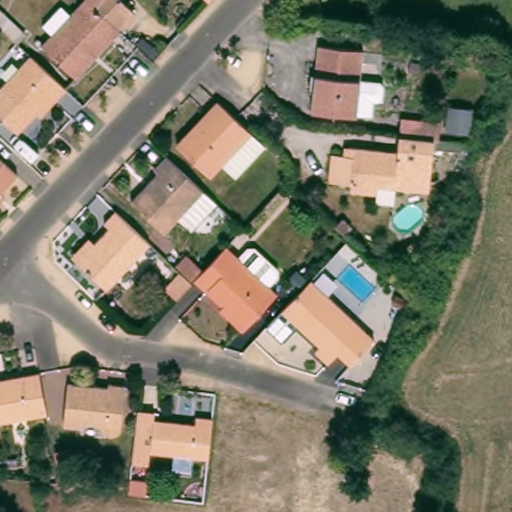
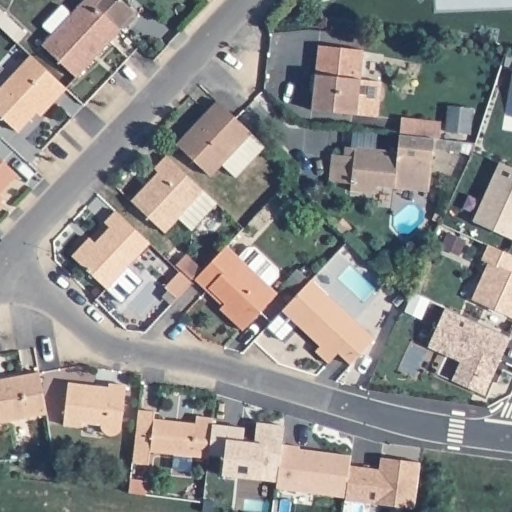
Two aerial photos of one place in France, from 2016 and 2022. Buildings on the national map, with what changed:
unchanged [(110,0),(130,19),(115,36),(117,37),(74,83),(41,52),(49,43),(39,35),(57,16),(66,24),(83,6),(91,14),(104,0),(110,0)]
unchanged [(360,52),(357,81),(377,84),(381,88),(380,100),(375,104),(371,103),(369,117),(354,115),(309,111),(315,47),(360,52)]
unchanged [(33,111),(16,130),(0,116),(0,86),(29,54),(64,86),(52,100),(38,115),(33,111)]
unchanged [(261,142),(233,174),(218,160),(207,173),(173,141),(187,127),(190,129),(206,111),(204,109),(214,98),(233,116),(261,142)]
unchanged [(429,201),(375,196),(374,203),(348,200),(348,195),(328,193),(330,166),(345,168),(346,159),(396,163),(398,146),(434,150),(429,201)]
unchanged [(214,200),(190,227),(176,214),(161,230),(128,199),(155,169),(151,166),(164,153),(214,200)]
unchanged [(15,172),(0,190),(0,158),(15,172)]
new [(499,161),(512,167),(512,238),(473,220),(499,161)]
unchanged [(0,199),(0,193),(3,196),(0,199)]
unchanged [(104,291),(75,264),(69,258),(88,240),(93,246),(108,230),(102,225),(113,213),(148,246),(104,291)]
new [(488,261),(481,258),(488,244),(512,254),(512,316),(472,298),(488,261)]
unchanged [(224,249),(275,296),(242,332),(218,312),(224,306),(208,290),(205,293),(193,282),(224,249)]
unchanged [(176,300),(165,289),(178,274),(190,285),(176,300)]
unchanged [(275,318),(279,314),(309,282),(373,339),(349,365),(337,353),(327,364),(315,353),(318,350),(301,334),(297,339),(275,318)]
new [(453,380),(460,360),(429,347),(446,308),(509,337),(486,393),(453,380)]
unchanged [(37,373),(44,412),(0,421),(0,379),(37,373)]
unchanged [(105,390),(105,385),(123,386),(119,426),(116,432),(113,434),(110,435),(106,434),(103,433),(101,432),(100,429),(99,426),(100,424),(80,422),(79,427),(62,425),(65,385),(105,390)]
unchanged [(210,455),(154,448),(153,460),(135,458),(142,406),(158,408),(157,416),(196,420),(197,411),(215,413),(210,455)]
new [(261,479),(223,474),(224,457),(210,455),(214,424),(256,428),(256,421),(284,425),(282,443),(278,481),(261,479)]
new [(278,481),(282,443),(301,445),(301,448),(351,454),(350,465),(346,497),(277,487),(278,481)]
new [(346,497),(350,465),(380,469),(381,457),(419,461),(414,507),(346,499),(346,497)]

